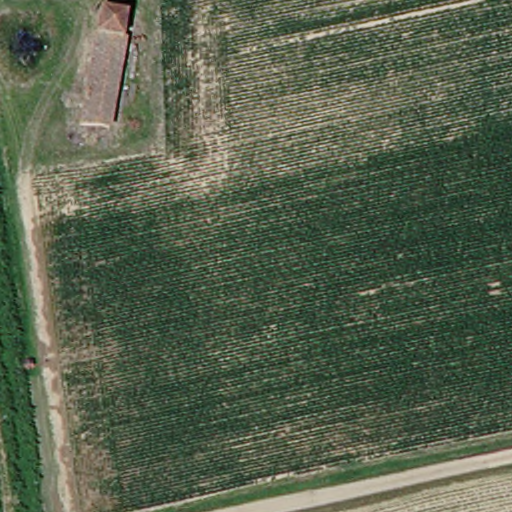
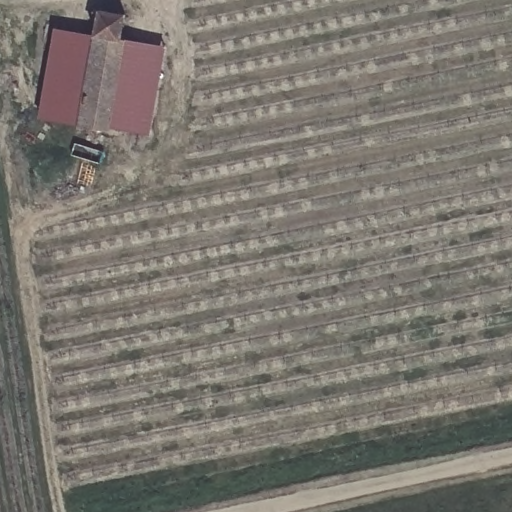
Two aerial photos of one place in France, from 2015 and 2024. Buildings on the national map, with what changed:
new [(98,5),(125,9),(107,127),(80,124),(98,5)]
demolished [(116,49),(123,51),(105,135),(68,124),(90,12),(122,18),(116,49)]
new [(42,118),(56,26),(94,32),(80,124),(42,118)]
new [(121,35),(160,41),(145,133),(107,127),(121,35)]

